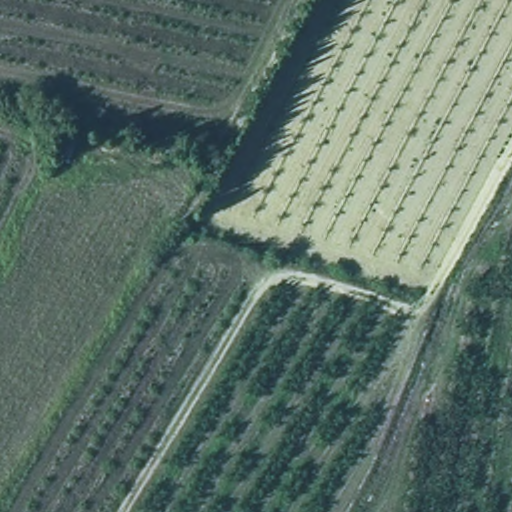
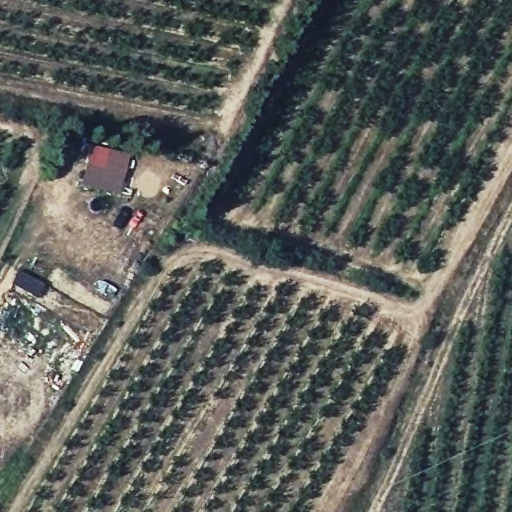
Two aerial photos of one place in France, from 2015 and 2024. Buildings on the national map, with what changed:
new [(130,155),(121,195),(82,186),(91,146),(130,155)]

